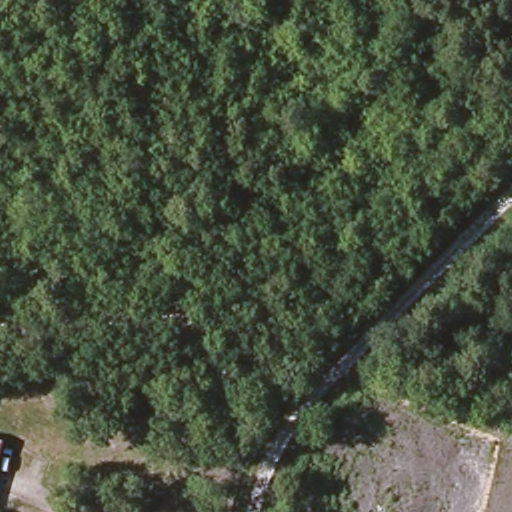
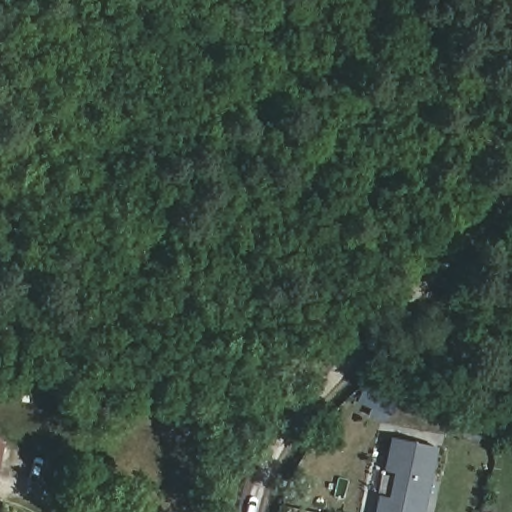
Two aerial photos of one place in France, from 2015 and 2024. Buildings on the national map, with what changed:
new [(438,447),(424,512),(375,512),(391,437),(438,447)]
unchanged [(5,454),(0,467),(0,452),(5,454)]

